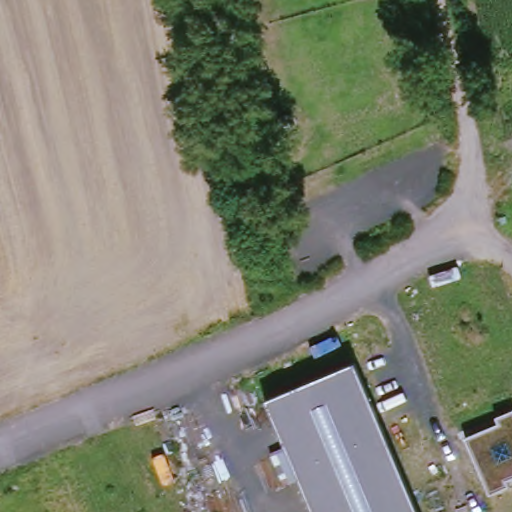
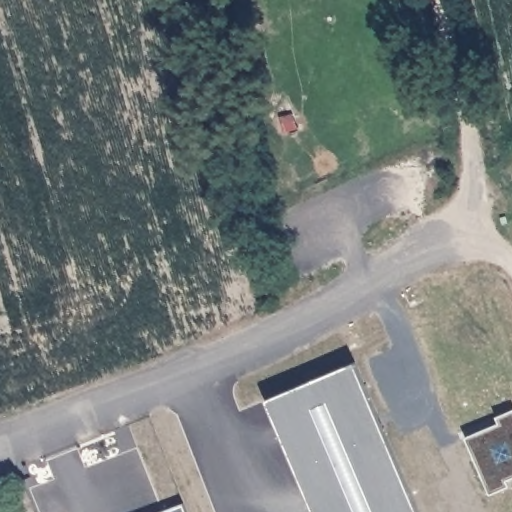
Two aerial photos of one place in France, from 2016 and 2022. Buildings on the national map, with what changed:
unchanged [(418,512),(312,512),(265,399),(354,361),(418,512)]
unchanged [(502,422),(500,416),(512,411),(512,479),(510,480),(512,484),(512,486),(493,493),(468,437),(502,422)]
new [(187,512),(161,512),(183,503),(187,512)]

